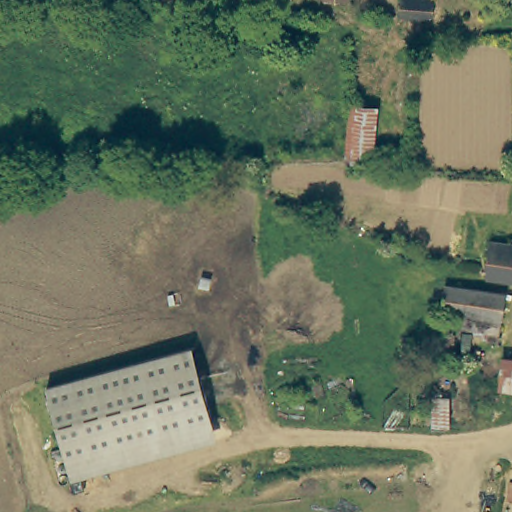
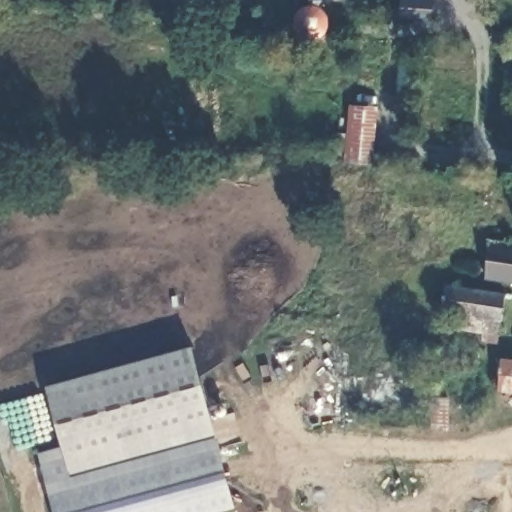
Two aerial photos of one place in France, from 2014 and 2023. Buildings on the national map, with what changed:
unchanged [(374,4),(374,0),(413,0),(413,5),(374,4)]
unchanged [(352,101),(380,103),(377,157),(347,158),(352,101)]
unchanged [(494,246),(512,247),(512,281),(491,279),(494,246)]
unchanged [(506,333),(467,333),(467,320),(441,320),(441,316),(432,316),(432,302),(443,302),(443,300),(443,293),(506,292),(506,333)]
unchanged [(453,347),(440,347),(440,327),(453,327),(453,347)]
unchanged [(193,348),(218,441),(71,479),(46,388),(193,348)]
unchanged [(499,359),(512,359),(512,393),(499,393),(499,376),(499,359)]
new [(68,466),(71,479),(218,441),(238,508),(221,512),(54,512),(39,455),(63,447),(68,466)]

